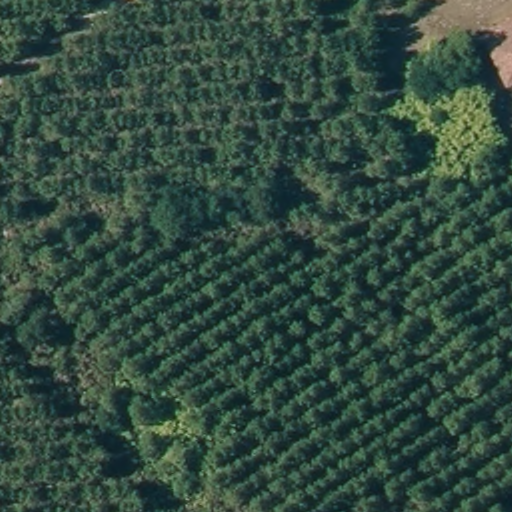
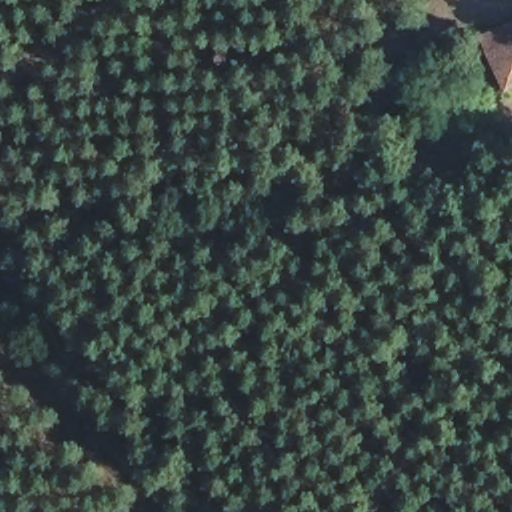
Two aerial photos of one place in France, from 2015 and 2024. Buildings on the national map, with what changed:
unchanged [(504,95),(488,56),(482,41),(486,39),(494,36),(512,28),(512,91),(504,95)]

